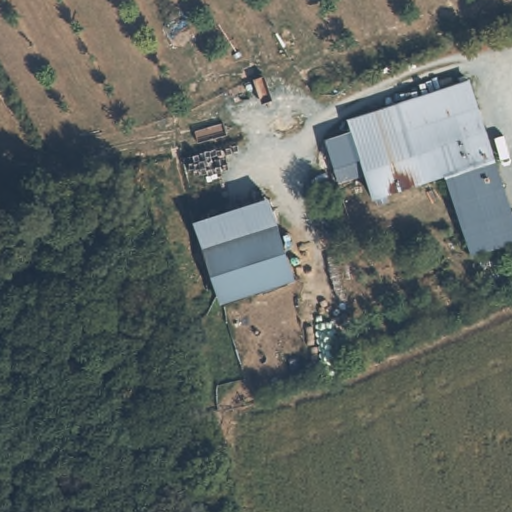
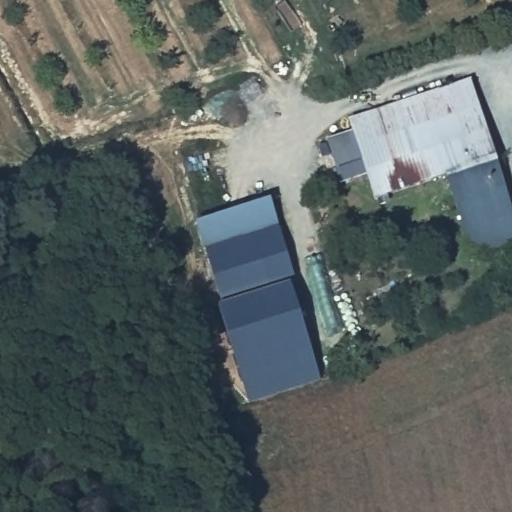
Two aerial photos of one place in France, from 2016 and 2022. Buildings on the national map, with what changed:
unchanged [(472,85),(512,228),(512,248),(470,260),(446,177),(374,196),(353,116),(472,85)]
new [(356,129),(368,173),(340,182),(337,168),(332,155),(324,156),(321,145),(329,144),(327,138),(356,129)]
new [(277,228),(205,248),(196,221),(270,197),(277,228)]
new [(508,213),(512,211),(512,228),(508,213)]
unchanged [(277,228),(291,279),(215,299),(202,249),(277,228)]
new [(322,380),(250,404),(215,299),(291,279),(322,380)]

